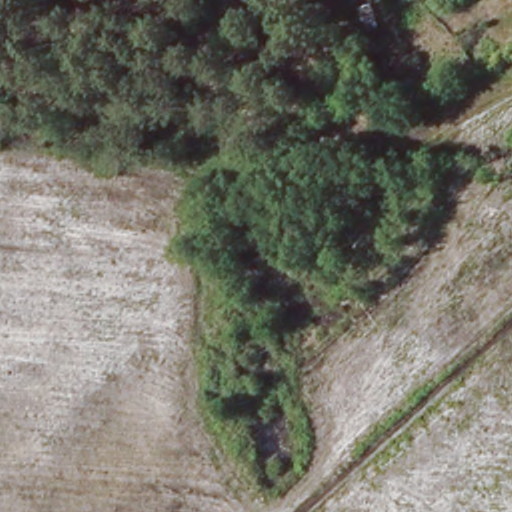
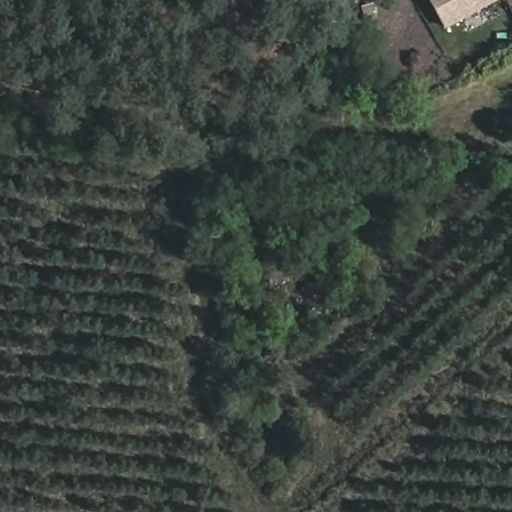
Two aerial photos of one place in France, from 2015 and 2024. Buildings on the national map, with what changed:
new [(445,31),(428,0),(501,0),(445,31)]

